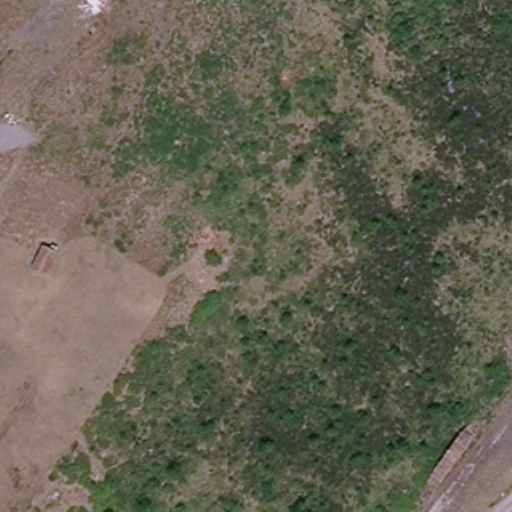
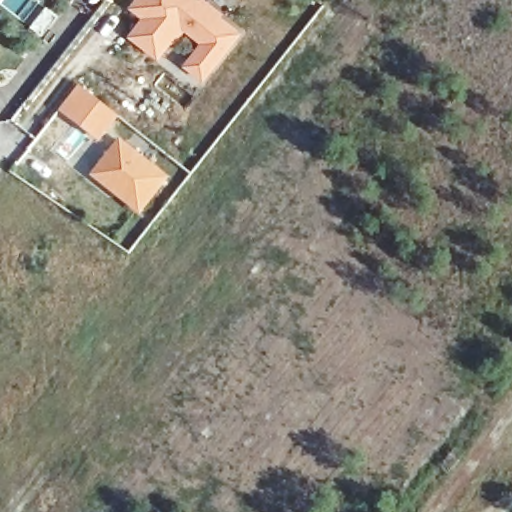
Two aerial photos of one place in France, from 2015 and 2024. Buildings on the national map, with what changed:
new [(200,43),(185,30),(156,60),(129,37),(142,18),(130,8),(136,0),(201,0),(242,32),(204,81),(184,67),(200,43)]
new [(79,84),(120,116),(100,142),(58,109),(79,84)]
new [(90,177),(119,139),(169,177),(139,215),(90,177)]
unchanged [(45,272),(31,268),(41,248),(55,254),(45,272)]
demolished [(50,296),(36,291),(46,271),(60,277),(50,296)]

